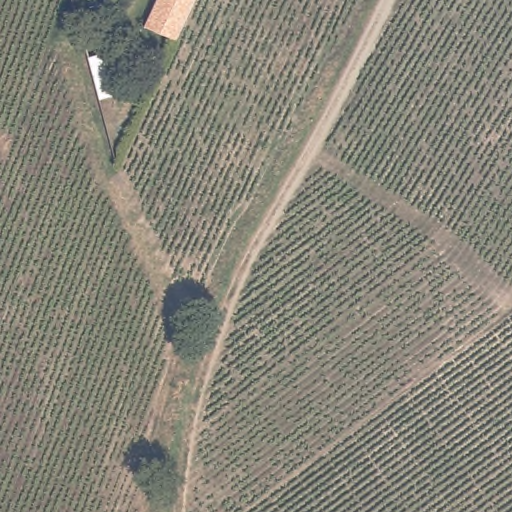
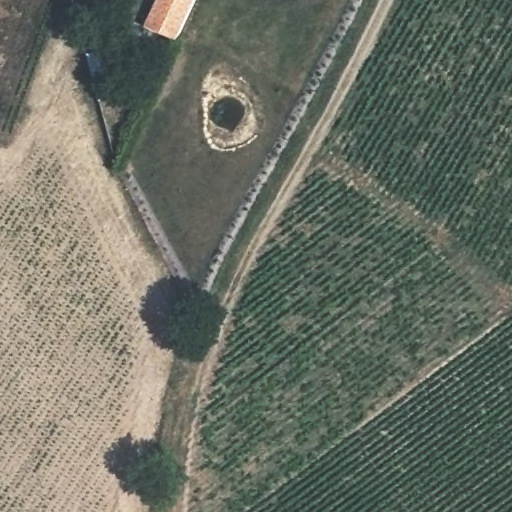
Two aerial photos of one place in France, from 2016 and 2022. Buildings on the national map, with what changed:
unchanged [(143,27),(156,0),(194,0),(175,42),(143,27)]

